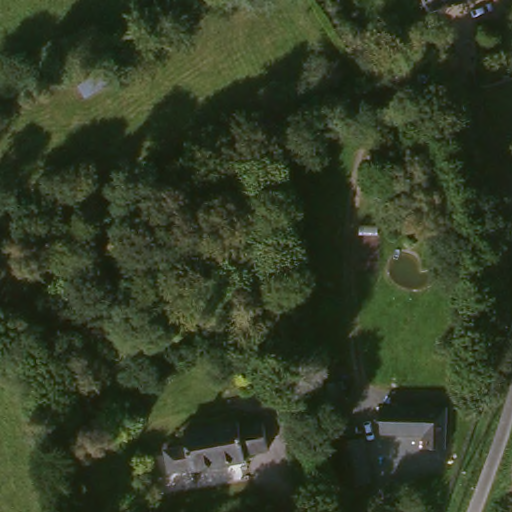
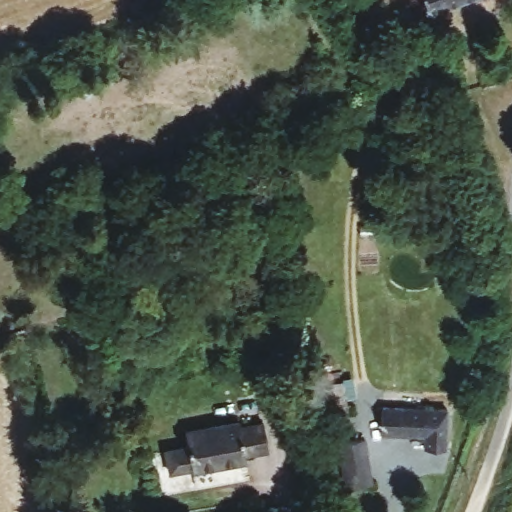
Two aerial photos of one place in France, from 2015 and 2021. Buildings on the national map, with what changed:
unchanged [(430,0),(472,0),(434,13),(430,0)]
unchanged [(448,451),(427,450),(428,435),(381,430),(385,405),(450,409),(448,451)]
unchanged [(199,444),(197,428),(250,418),(251,425),(275,421),(280,451),(258,456),(259,462),(205,472),(204,468),(179,472),(175,449),(199,444)]
unchanged [(376,486),(350,489),(345,443),(373,437),(376,486)]

